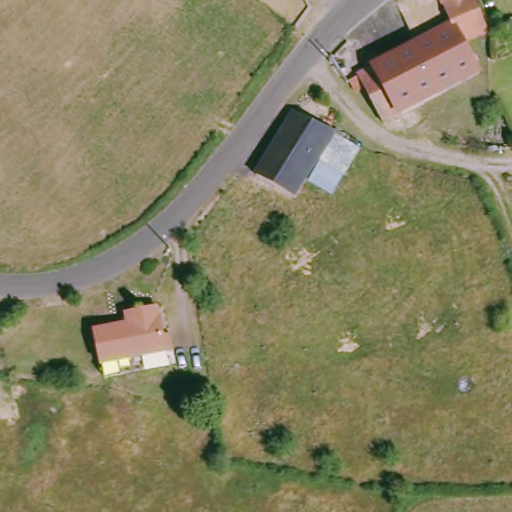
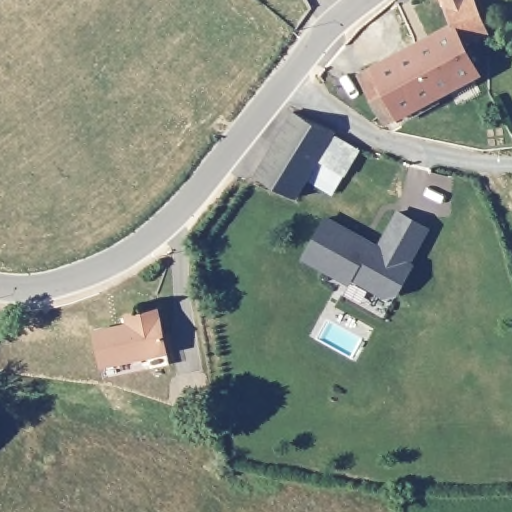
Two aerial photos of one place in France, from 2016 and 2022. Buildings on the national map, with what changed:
unchanged [(489,30),(465,39),(481,69),(385,120),(361,72),(432,35),(424,5),(435,0),(476,0),(489,30)]
unchanged [(261,177),(303,112),(339,135),(363,152),(349,178),(333,200),(307,185),(296,202),(261,177)]
new [(327,265),(304,252),(326,213),(358,231),(376,241),(379,243),(399,208),(428,224),(408,259),(412,261),(397,288),(381,289),(346,269),(343,274),(327,265)]
unchanged [(149,372),(146,359),(105,369),(95,334),(128,326),(125,316),(161,306),(173,352),(176,365),(149,372)]

